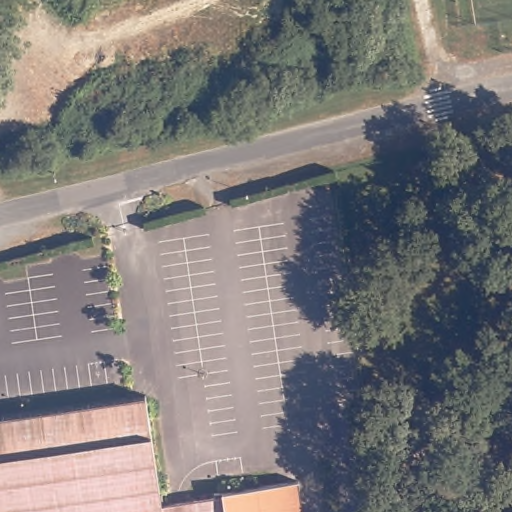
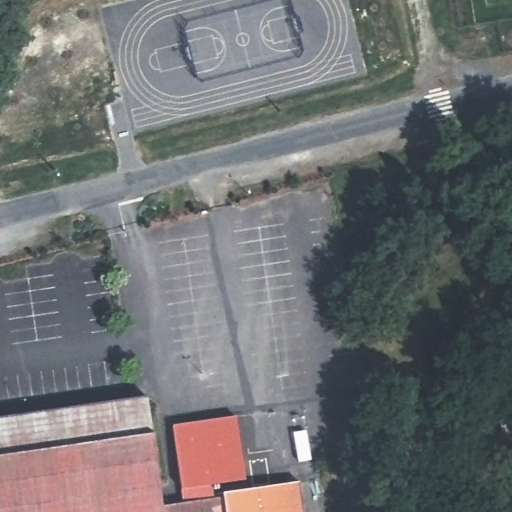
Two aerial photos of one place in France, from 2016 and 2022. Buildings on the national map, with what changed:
unchanged [(219,491),(226,490),(302,479),(307,512),(0,512),(0,414),(151,393),(166,502),(219,495),(219,491)]
new [(236,414),(246,478),(220,483),(221,490),(219,491),(219,495),(178,500),(173,423),(236,414)]

